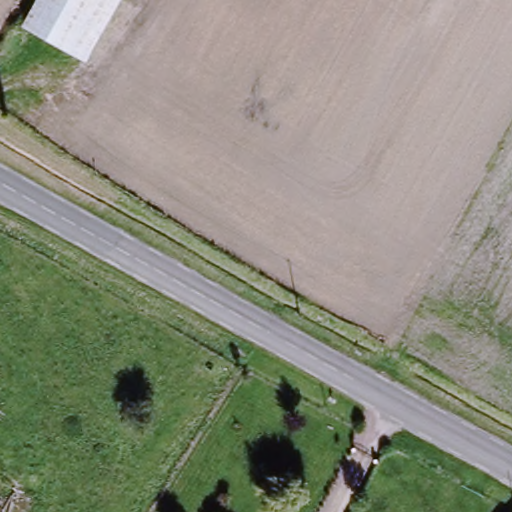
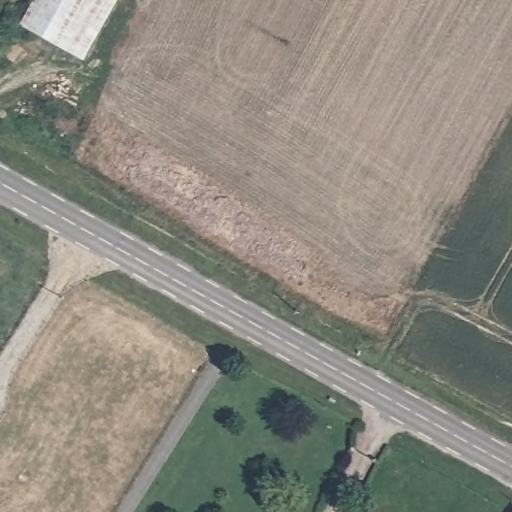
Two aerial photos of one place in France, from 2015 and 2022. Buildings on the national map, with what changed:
unchanged [(120,0),(86,66),(21,31),(39,0),(120,0)]

